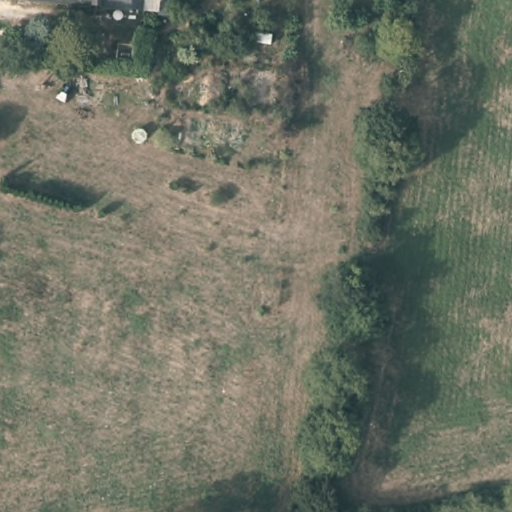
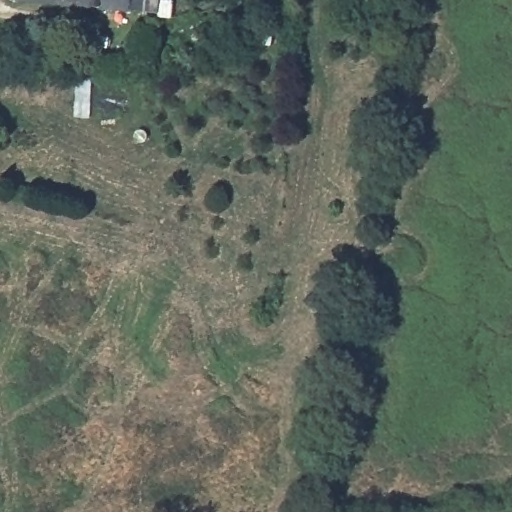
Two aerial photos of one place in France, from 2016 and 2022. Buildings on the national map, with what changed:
unchanged [(14,1),(14,0),(145,0),(144,12),(14,1)]

